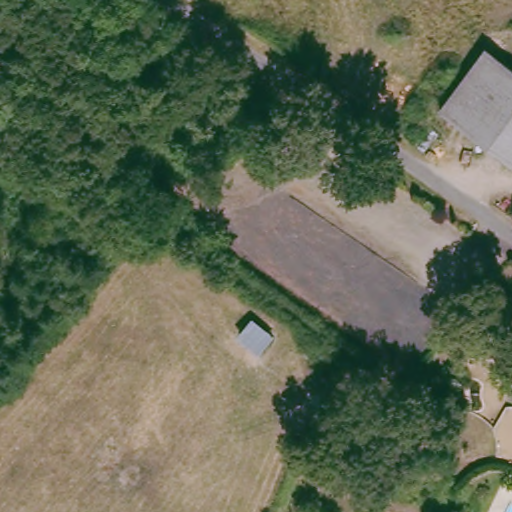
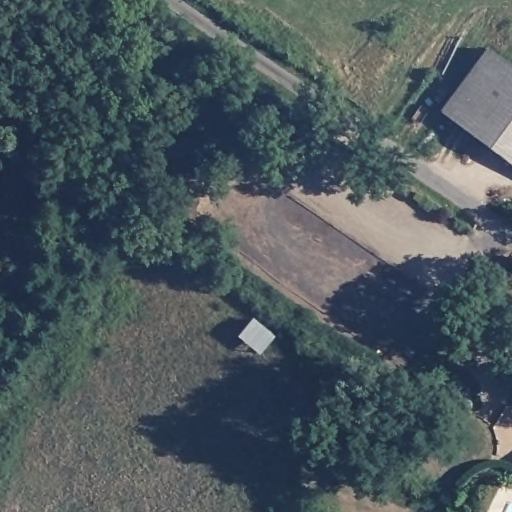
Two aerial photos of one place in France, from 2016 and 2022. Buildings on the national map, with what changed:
unchanged [(480,43),(512,66),(512,164),(434,105),(480,43)]

